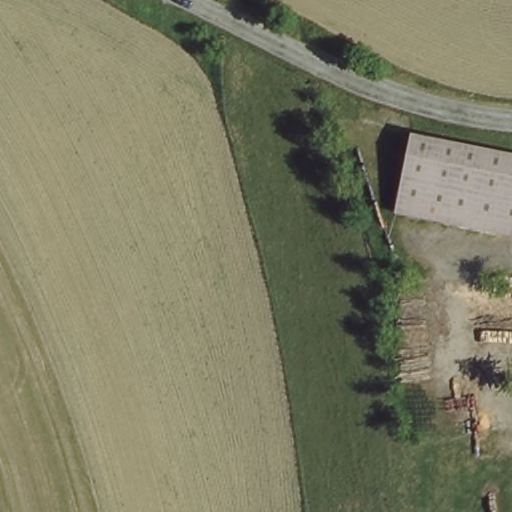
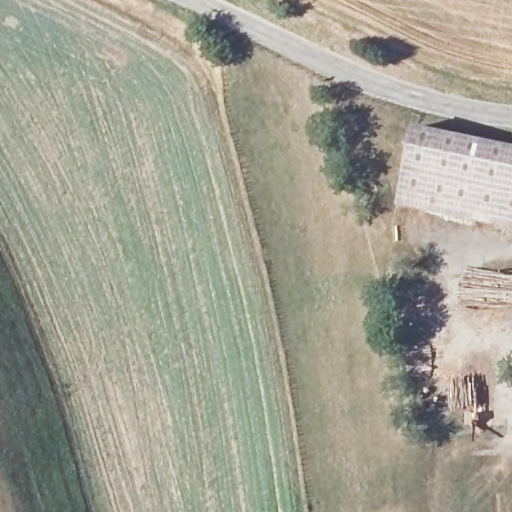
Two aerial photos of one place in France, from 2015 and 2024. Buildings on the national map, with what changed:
unchanged [(409,127),(512,147),(512,224),(397,199),(409,127)]

